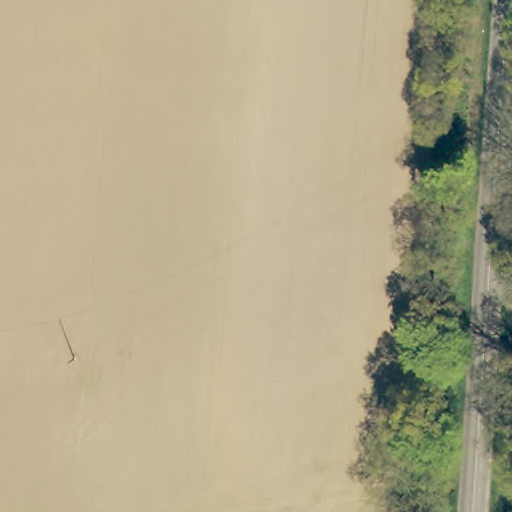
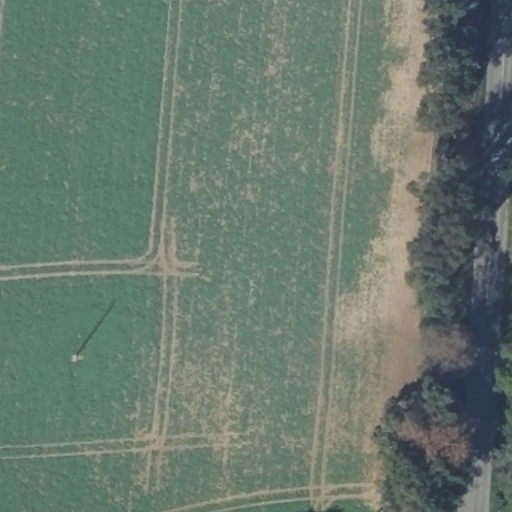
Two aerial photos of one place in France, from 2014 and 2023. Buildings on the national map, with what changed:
[]

